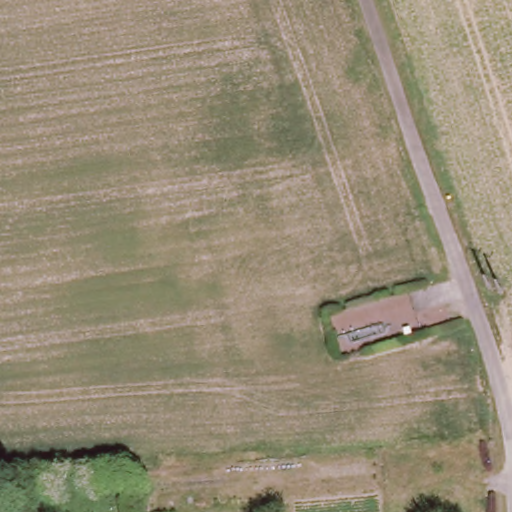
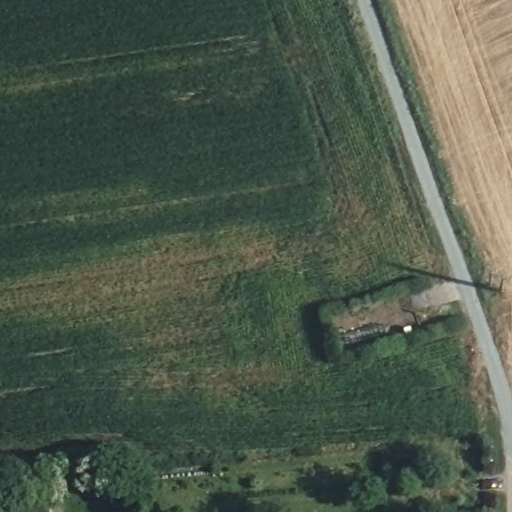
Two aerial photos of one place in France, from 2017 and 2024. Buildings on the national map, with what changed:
unchanged [(53,505),(36,505),(36,491),(74,491),(74,505),(74,512),(53,512),(53,505)]

